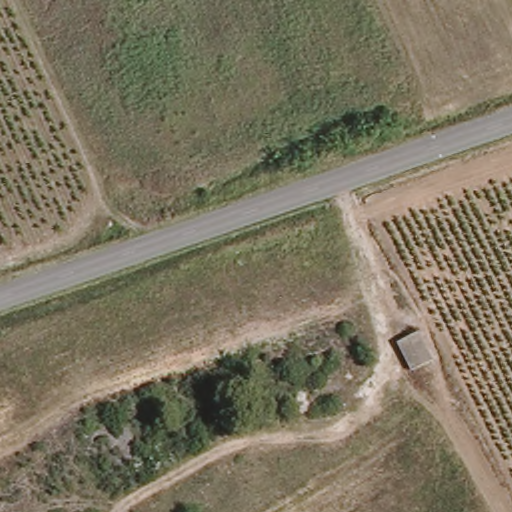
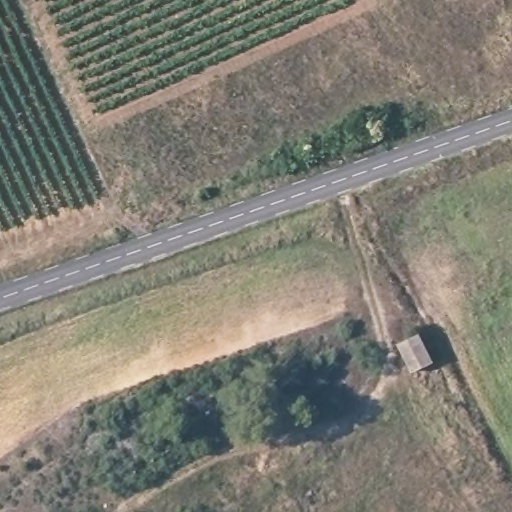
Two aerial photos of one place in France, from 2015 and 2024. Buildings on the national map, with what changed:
unchanged [(420,332),(433,359),(413,369),(399,343),(420,332)]

